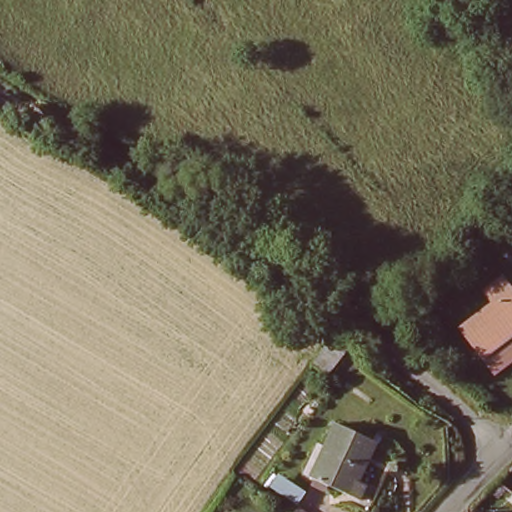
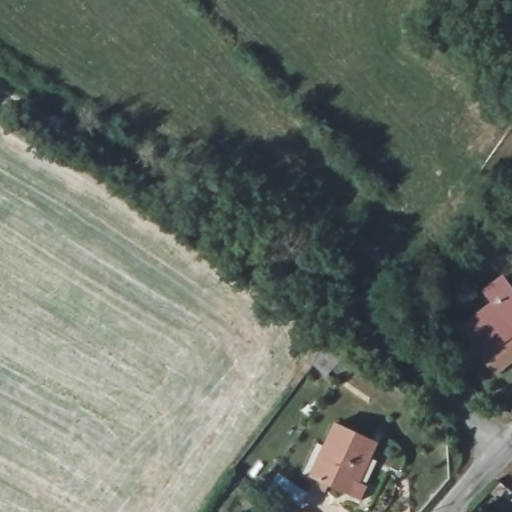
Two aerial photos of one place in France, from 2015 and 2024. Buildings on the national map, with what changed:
unchanged [(512,301),(512,338),(480,361),(459,332),(492,309),(482,295),(500,283),(512,301)]
unchanged [(340,356),(328,371),(316,361),(327,346),(340,356)]
unchanged [(376,439),(358,478),(369,483),(362,498),(313,475),(339,421),(376,439)]

